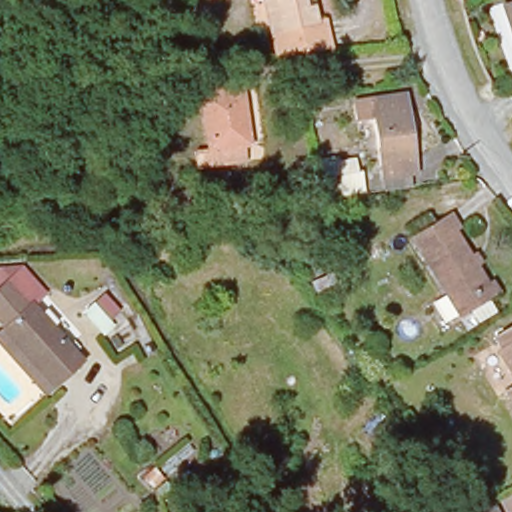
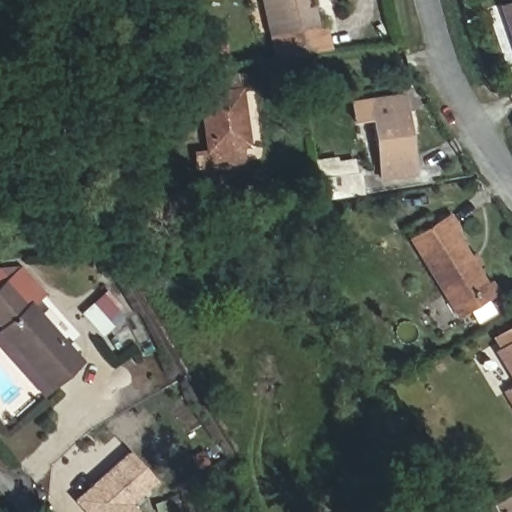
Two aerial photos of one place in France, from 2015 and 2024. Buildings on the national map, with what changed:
unchanged [(307,4),(312,3),(315,17),(324,15),(332,47),(275,60),(260,0),(307,0),(307,4)]
unchanged [(512,0),(512,26),(502,4),(512,0)]
unchanged [(243,155),(207,160),(199,89),(239,84),(254,82),(260,134),(247,135),(242,135),(243,155)]
unchanged [(416,165),(387,171),(387,165),(384,160),(380,155),(370,97),(402,91),(416,165)]
unchanged [(316,171),(346,165),(348,185),(320,190),(316,171)]
unchanged [(207,197),(180,205),(175,184),(201,175),(207,197)]
unchanged [(500,288),(469,307),(461,312),(412,236),(452,210),(461,223),(451,230),(484,280),(491,275),(500,288)]
unchanged [(0,315),(0,282),(10,275),(30,298),(35,294),(82,350),(52,376),(3,318),(0,315)]
new [(104,294),(118,310),(107,320),(113,326),(103,336),(82,314),(93,304),(104,294)]
unchanged [(52,376),(42,384),(0,338),(0,321),(3,318),(52,376)]
unchanged [(512,325),(512,372),(491,340),(512,325)]
unchanged [(512,372),(512,402),(498,381),(512,372)]
new [(157,480),(132,503),(140,512),(84,512),(72,500),(130,450),(157,480)]

